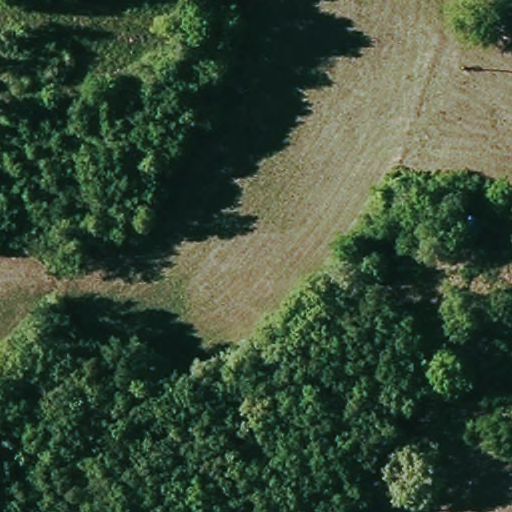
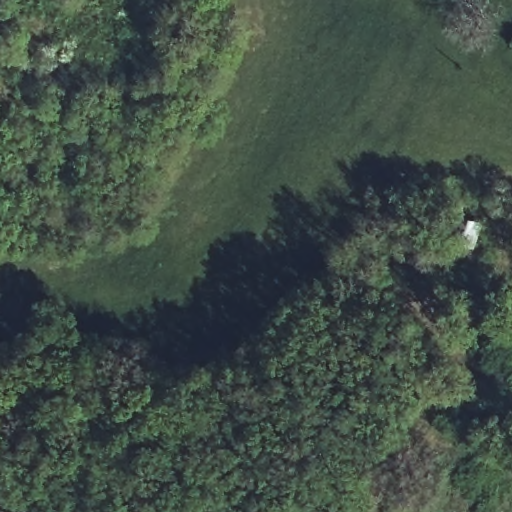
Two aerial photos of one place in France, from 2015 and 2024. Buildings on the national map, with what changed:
unchanged [(483,226),(474,250),(460,244),(467,220),(483,226)]

